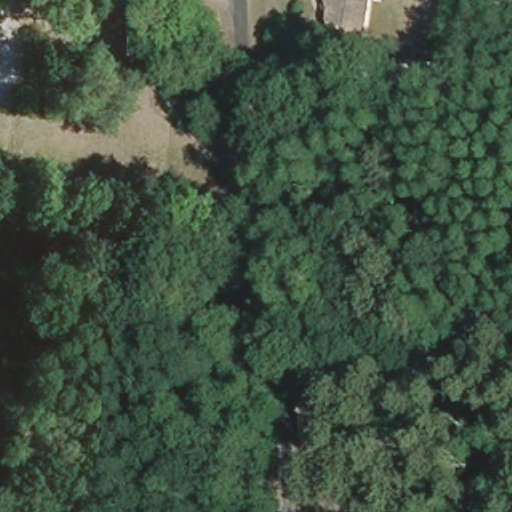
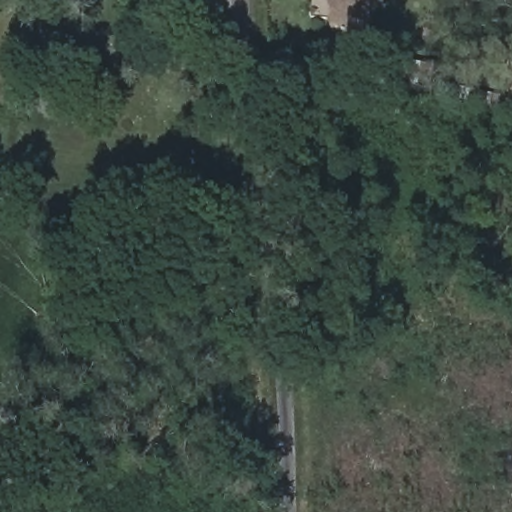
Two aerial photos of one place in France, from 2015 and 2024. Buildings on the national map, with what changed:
unchanged [(335,31),(330,19),(332,0),(371,0),(366,35),(335,31)]
unchanged [(463,54),(458,80),(420,74),(425,48),(463,54)]

